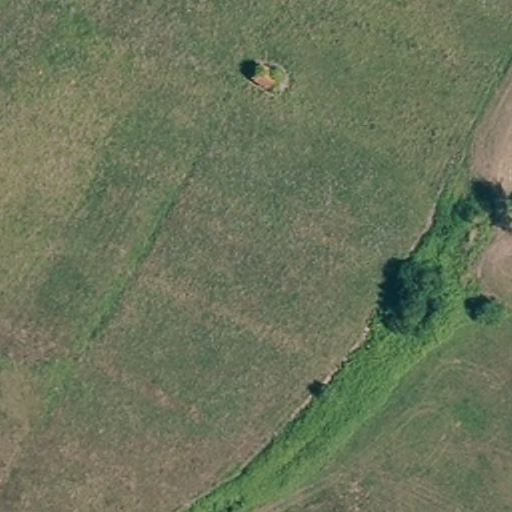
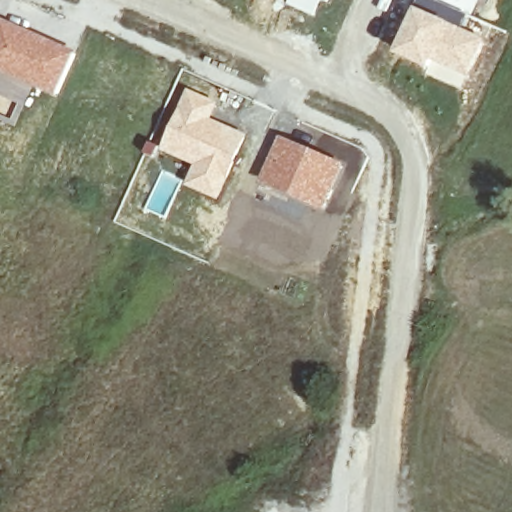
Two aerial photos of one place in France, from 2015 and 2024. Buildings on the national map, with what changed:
new [(290,0),(331,0),(329,5),(323,2),(316,18),(288,5),(290,0)]
new [(419,0),(435,0),(469,15),(462,30),(488,41),(469,78),(433,60),(429,70),(394,55),(416,8),(419,0)]
new [(473,17),(469,15),(435,0),(480,0),(473,17)]
new [(57,96),(0,71),(0,19),(0,17),(76,50),(57,96)]
unchanged [(282,76),(276,89),(257,80),(263,67),(282,76)]
new [(249,136),(220,201),(187,187),(196,166),(163,152),(189,90),(220,104),(212,120),(249,136)]
new [(346,165),(324,211),(260,184),(281,137),(346,165)]

